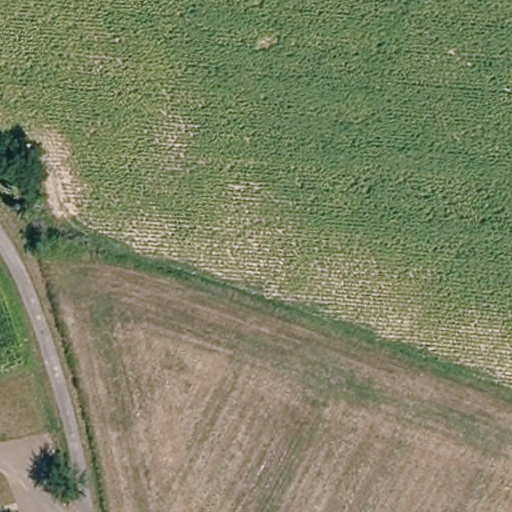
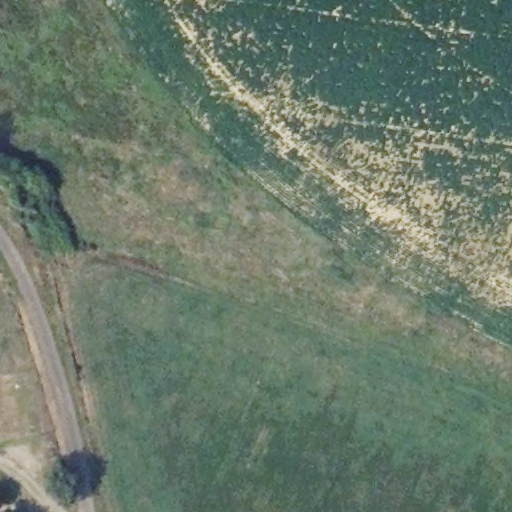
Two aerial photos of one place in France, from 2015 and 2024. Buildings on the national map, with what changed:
[]

